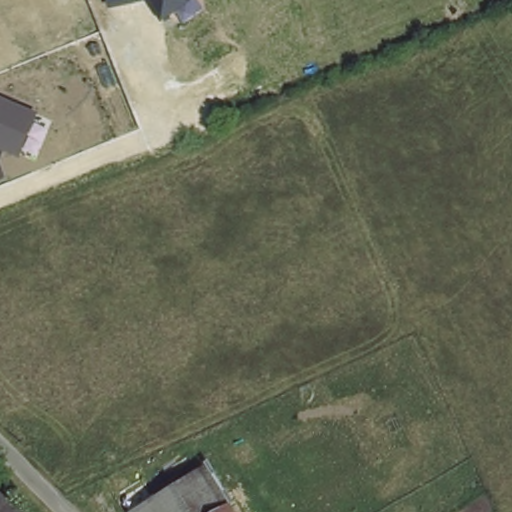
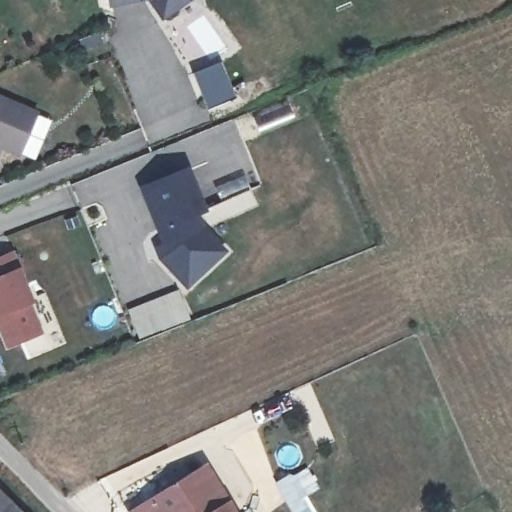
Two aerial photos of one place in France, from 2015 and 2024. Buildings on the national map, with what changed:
unchanged [(107,7),(105,0),(138,0),(107,7)]
unchanged [(143,0),(191,0),(193,1),(160,21),(143,0)]
new [(205,109),(201,99),(191,72),(219,61),(229,88),(233,97),(205,109)]
unchanged [(39,111),(19,157),(0,150),(0,96),(39,111)]
new [(158,260),(153,247),(160,244),(138,187),(190,167),(206,213),(199,216),(227,250),(184,290),(158,260)]
unchanged [(8,254),(28,301),(25,303),(37,332),(5,346),(0,335),(0,257),(8,254)]
new [(140,340),(128,310),(179,290),(191,320),(140,340)]
unchanged [(206,462),(237,512),(137,512),(134,507),(206,462)]
unchanged [(24,512),(0,512),(0,487),(24,512)]

